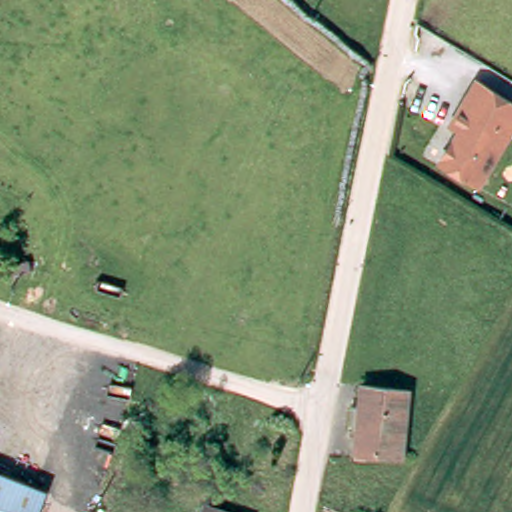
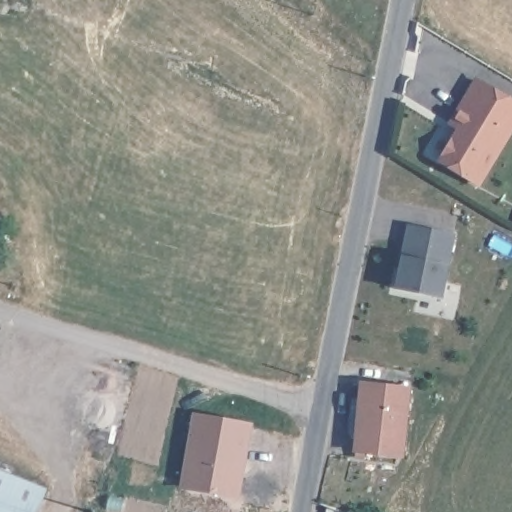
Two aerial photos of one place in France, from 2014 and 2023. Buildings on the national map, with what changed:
unchanged [(512,103),(512,125),(477,184),(439,161),(458,129),(450,124),(475,81),(512,103)]
new [(449,264),(442,298),(395,289),(402,254),(407,225),(453,234),(449,264)]
unchanged [(407,380),(402,445),(367,442),(367,448),(355,448),(357,420),(348,419),(350,395),(360,395),(362,375),(407,380)]
new [(179,489),(192,412),(253,423),(239,500),(179,489)]
unchanged [(25,512),(0,512),(0,468),(37,482),(25,512)]
demolished [(193,512),(200,494),(251,512),(193,512)]

